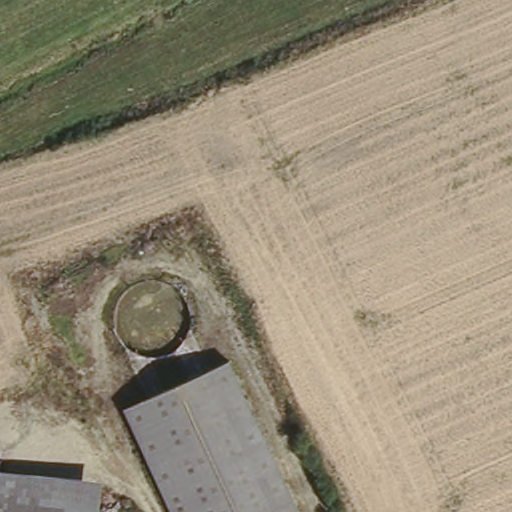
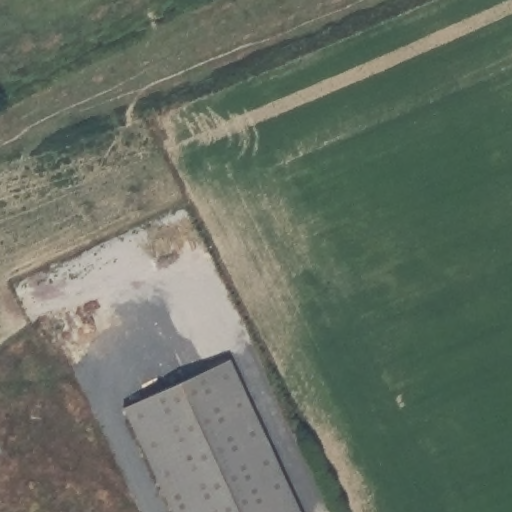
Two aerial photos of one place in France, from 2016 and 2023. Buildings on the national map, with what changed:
unchanged [(300,512),(175,512),(129,406),(234,362),(300,512)]
demolished [(102,507),(150,511),(150,512),(0,512),(0,475),(1,465),(105,476),(102,507)]

